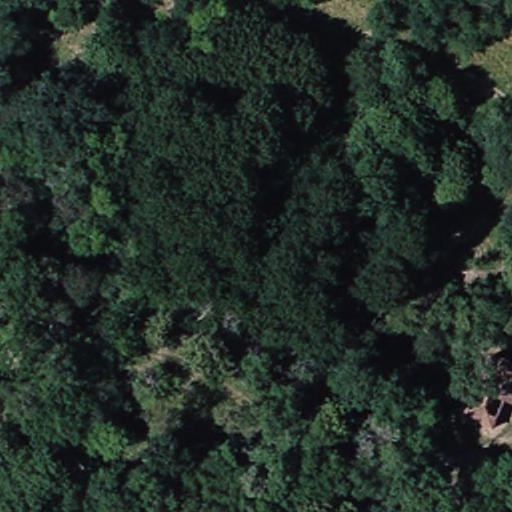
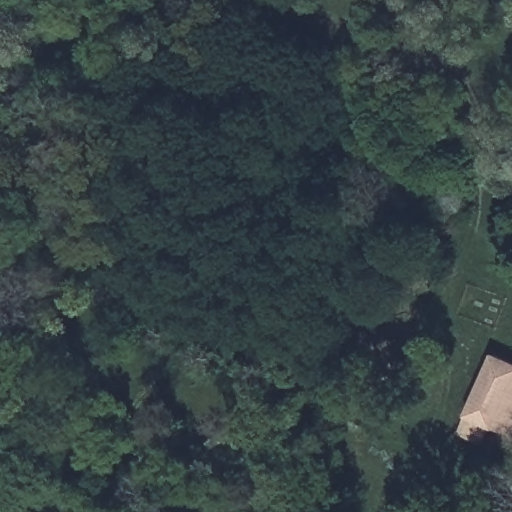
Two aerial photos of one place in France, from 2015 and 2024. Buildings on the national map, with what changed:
new [(477,384),(492,351),(512,359),(512,421),(509,426),(498,421),(467,408),(477,384)]
demolished [(512,408),(502,432),(470,420),(481,395),(512,408)]

